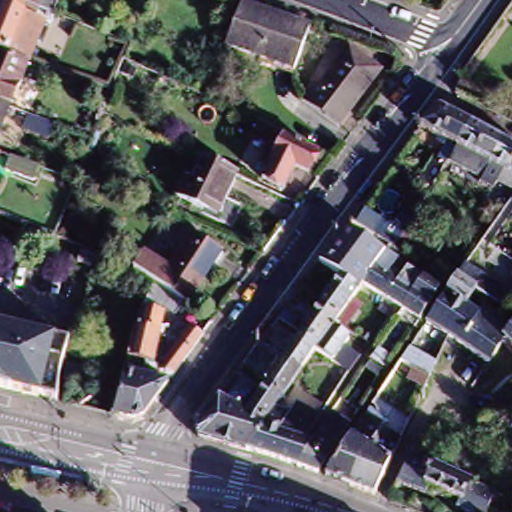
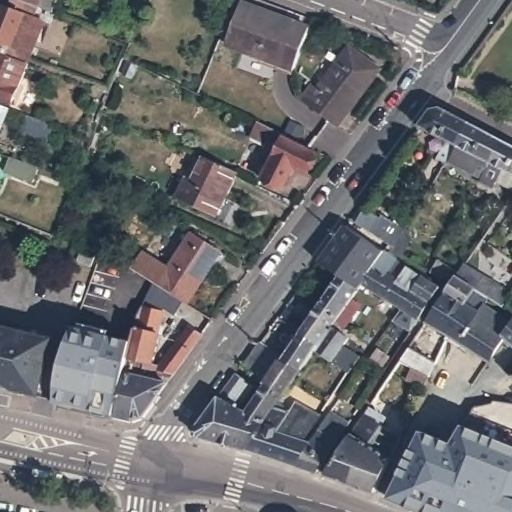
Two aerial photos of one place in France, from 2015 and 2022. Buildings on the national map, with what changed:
unchanged [(6,57),(6,59),(0,56),(0,20),(3,11),(7,12),(11,2),(12,0),(50,0),(55,2),(50,17),(36,12),(30,30),(19,25),(12,44),(22,48),(17,61),(6,57)]
unchanged [(294,70),(225,46),(240,5),(308,29),(294,70)]
unchanged [(306,104),(316,90),(348,47),(379,70),(347,112),(336,127),(306,104)]
unchanged [(11,110),(0,105),(0,59),(27,70),(11,110)]
unchanged [(489,163),(482,174),(467,166),(473,155),(456,146),(445,163),(437,159),(448,141),(418,126),(430,109),(440,107),(441,107),(442,107),(470,122),(502,140),(512,145),(512,186),(501,180),(506,171),(489,163)]
unchanged [(28,120),(24,131),(0,122),(0,109),(28,120)]
unchanged [(298,171),(286,194),(266,185),(275,169),(267,165),(272,155),(280,159),(287,145),(312,153),(322,158),(312,177),(298,171)]
unchanged [(32,182),(3,171),(9,157),(37,168),(32,182)]
unchanged [(235,174),(215,214),(175,196),(183,178),(191,181),(202,159),(235,174)]
unchanged [(448,210),(439,225),(426,216),(435,202),(448,210)]
unchanged [(355,210),(396,239),(388,252),(345,223),(355,210)]
unchanged [(182,296),(152,277),(132,264),(143,247),(167,262),(190,228),(220,248),(187,299),(182,296)]
unchanged [(352,239),(349,245),(330,270),(317,262),(340,230),(352,239)]
unchanged [(290,470),(283,467),(266,462),(258,460),(247,457),(240,455),(216,449),(195,443),(191,432),(214,401),(231,377),(232,378),(255,395),(260,387),(276,363),(294,337),(296,335),(312,311),(315,308),(330,285),(333,281),(345,289),(349,284),(335,274),(353,249),(358,242),(380,257),(396,268),(415,281),(432,292),(415,320),(413,323),(395,312),(375,300),(356,289),(352,295),(341,311),(350,317),(343,327),(340,325),(336,330),(333,335),(343,342),(327,365),(310,355),(295,376),(278,400),(273,408),(276,408),(275,415),(285,417),(292,406),(315,421),(305,436),(299,445),(306,447),(312,437),(325,418),(344,428),(332,447),(312,477),(290,470)]
new [(146,410),(145,411),(131,415),(113,411),(112,419),(55,402),(60,368),(61,366),(61,364),(62,361),(63,359),(68,344),(76,324),(113,332),(112,335),(130,340),(125,363),(132,329),(134,322),(136,313),(136,310),(137,308),(139,306),(151,280),(152,277),(182,296),(174,308),(164,301),(157,335),(150,367),(165,371),(164,377),(168,378),(146,410)]
demolished [(125,363),(132,329),(134,322),(136,313),(136,310),(137,308),(139,306),(151,280),(152,277),(182,296),(174,308),(164,301),(157,335),(150,367),(165,371),(164,377),(168,378),(146,410),(145,411),(131,415),(113,411),(124,367),(125,363)]
unchanged [(497,341),(482,365),(453,347),(443,341),(420,327),(440,297),(444,291),(445,290),(450,283),(470,295),(461,310),(473,318),(478,310),(506,329),(497,341)]
unchanged [(475,286),(488,295),(487,296),(493,300),(501,288),(511,295),(498,312),(483,303),(470,295),(475,286)]
unchanged [(175,368),(162,365),(161,365),(161,364),(161,363),(163,356),(163,355),(164,354),(187,320),(202,330),(175,368)]
unchanged [(512,355),(497,341),(506,329),(511,323),(512,324),(512,355)]
unchanged [(36,398),(0,389),(0,327),(50,340),(36,398)]
unchanged [(63,359),(62,361),(61,364),(61,366),(60,368),(55,402),(36,398),(50,340),(68,344),(63,359)]
unchanged [(423,355),(421,357),(435,365),(429,377),(412,367),(405,363),(400,360),(408,346),(423,355)]
unchanged [(382,363),(372,357),(377,348),(388,355),(382,363)]
unchanged [(334,370),(338,364),(347,370),(344,376),(334,370)]
unchanged [(320,480),(362,415),(372,416),(381,422),(388,409),(406,419),(370,499),(345,490),(342,488),(320,480)]
demolished [(460,441),(439,430),(436,429),(445,413),(468,426),(460,441)]
new [(462,425),(512,446),(512,512),(413,512),(407,510),(408,506),(388,498),(422,430),(453,441),(462,425)]
demolished [(451,512),(455,503),(427,491),(424,500),(396,488),(403,472),(410,458),(423,430),(436,436),(425,465),(423,466),(425,467),(469,487),(470,484),(493,494),(485,512),(451,512)]

